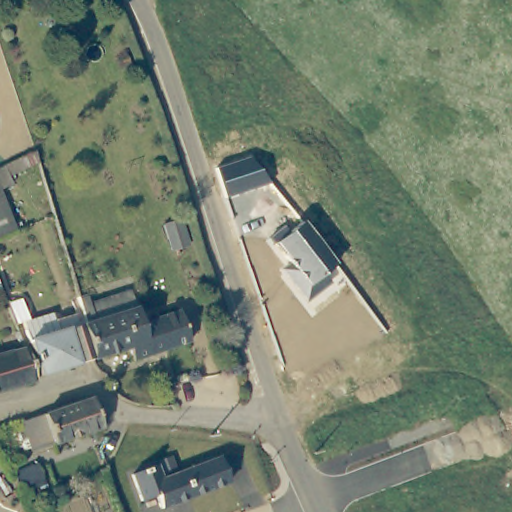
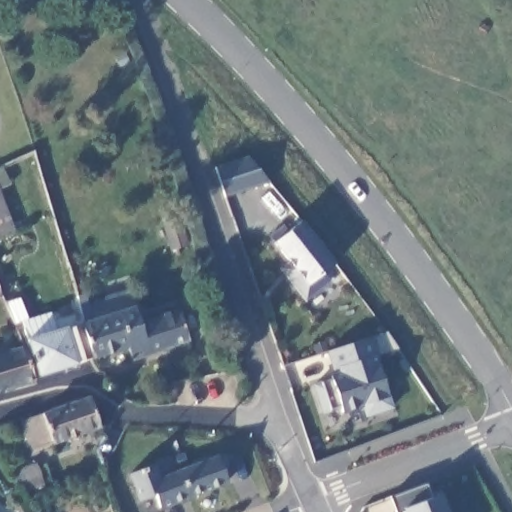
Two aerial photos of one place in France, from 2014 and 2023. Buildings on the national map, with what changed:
unchanged [(216,169),(247,157),(268,184),(225,197),(216,169)]
unchanged [(15,232),(0,237),(0,195),(15,232)]
unchanged [(278,269),(287,261),(274,242),(269,237),(282,227),(288,234),(301,222),(334,264),(324,274),(330,283),(306,302),(278,269)]
unchanged [(85,297),(87,304),(129,290),(141,324),(150,321),(154,337),(158,352),(132,361),(129,349),(92,360),(81,325),(84,324),(77,299),(85,297)]
unchanged [(181,312),(191,342),(158,352),(154,337),(150,321),(181,312)]
unchanged [(20,320),(26,335),(17,339),(12,324),(20,320)]
unchanged [(92,360),(36,377),(25,343),(81,325),(92,360)]
new [(331,376),(324,353),(374,338),(395,409),(362,419),(361,409),(340,416),(338,410),(319,414),(310,383),(331,376)]
unchanged [(23,348),(33,381),(0,391),(0,355),(23,348)]
unchanged [(100,431),(30,454),(21,427),(91,404),(100,431)]
unchanged [(195,465),(194,461),(208,456),(210,459),(217,457),(226,482),(186,497),(179,477),(177,472),(195,465)]
unchanged [(179,477),(186,497),(158,507),(153,494),(139,499),(129,473),(153,464),(159,479),(177,472),(179,477)]
new [(391,498),(426,485),(432,498),(440,496),(446,512),(396,512),(391,498)]

